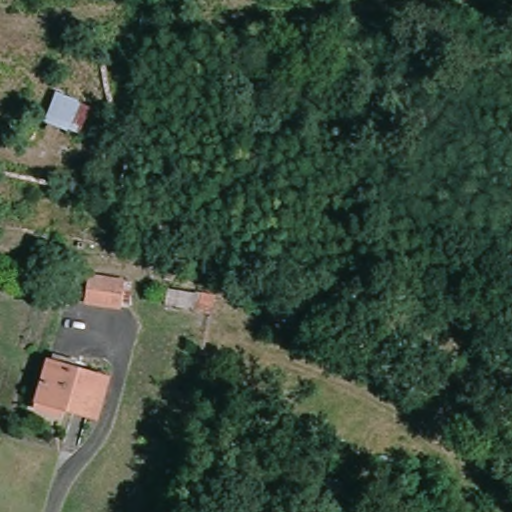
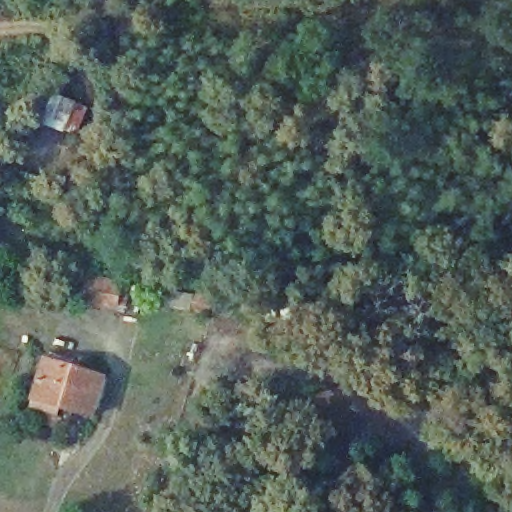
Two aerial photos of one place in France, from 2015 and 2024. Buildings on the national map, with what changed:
unchanged [(114,309),(81,310),(82,278),(97,277),(115,278),(114,309)]
unchanged [(194,305),(164,302),(166,282),(196,284),(194,305)]
unchanged [(87,416),(34,399),(50,362),(101,379),(87,416)]

